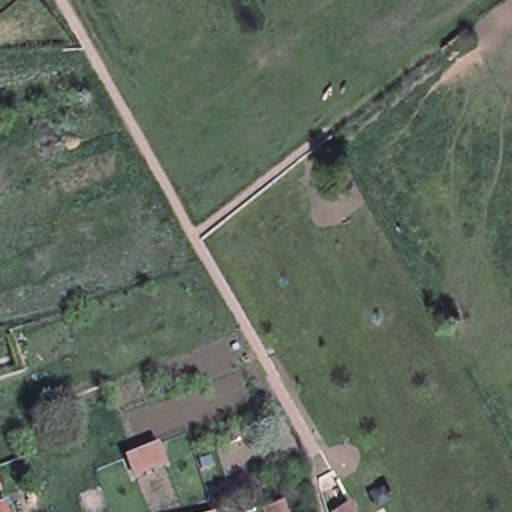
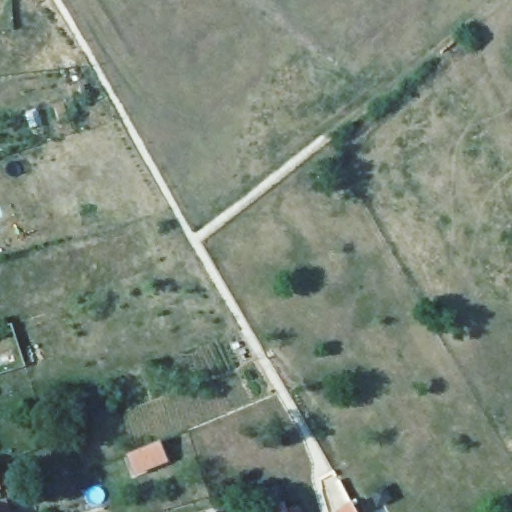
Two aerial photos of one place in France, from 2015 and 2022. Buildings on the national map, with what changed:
unchanged [(157,445),(165,462),(136,474),(128,457),(157,445)]
unchanged [(9,512),(0,512),(0,499),(5,497),(9,512)]
unchanged [(356,512),(336,512),(335,510),(351,501),(356,512)]
unchanged [(279,502),(282,511),(293,507),(294,512),(262,512),(261,508),(279,502)]
unchanged [(217,512),(203,512),(216,508),(217,512)]

